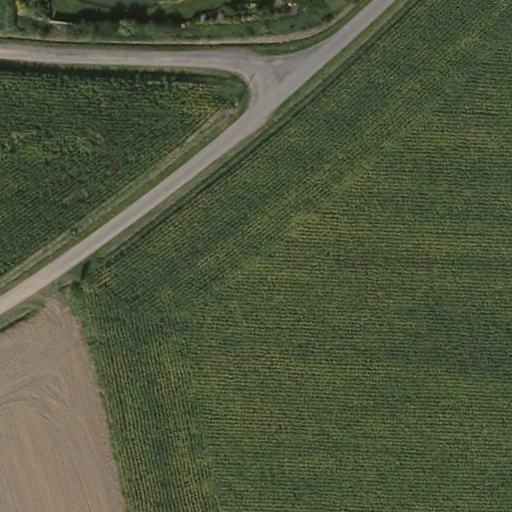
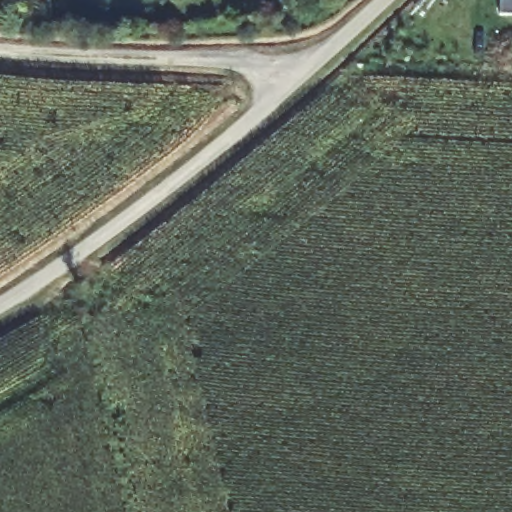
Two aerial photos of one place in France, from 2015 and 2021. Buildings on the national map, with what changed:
new [(501,0),(512,0),(512,16),(501,15),(501,0)]

